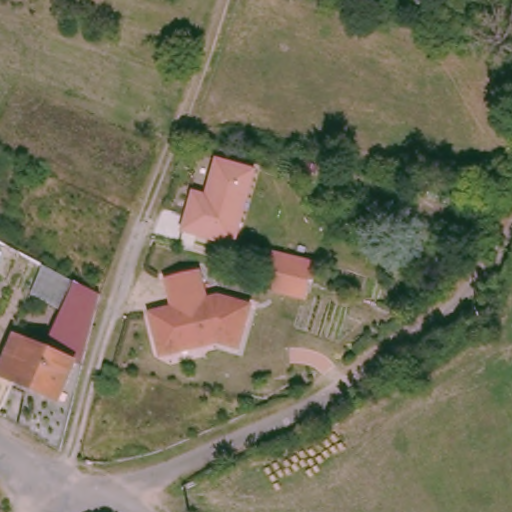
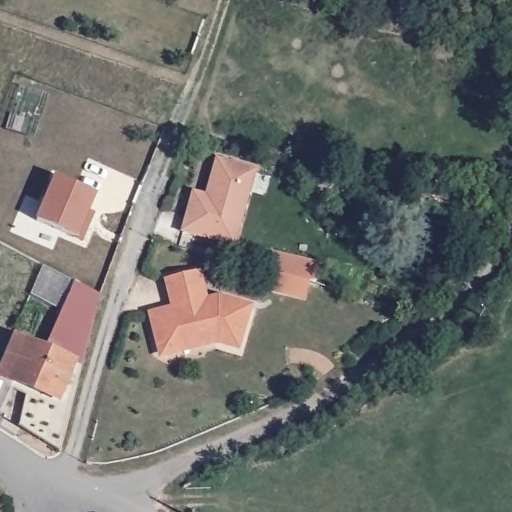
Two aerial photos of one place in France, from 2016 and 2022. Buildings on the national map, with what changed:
unchanged [(218,160),(257,172),(247,203),(208,193),(218,160)]
new [(37,220),(55,177),(97,195),(79,238),(37,220)]
unchanged [(183,230),(195,192),(207,196),(208,193),(247,203),(234,245),(183,230)]
unchanged [(331,269),(325,286),(297,277),(277,270),(282,254),(331,269)]
unchanged [(76,284),(62,313),(30,299),(44,268),(76,284)]
unchanged [(153,309),(172,306),(167,276),(200,270),(205,300),(217,298),(249,309),(235,351),(214,344),(203,345),(202,341),(155,349),(152,332),(157,331),(153,309)]
unchanged [(30,391),(17,385),(1,418),(0,418),(0,371),(15,335),(47,348),(62,313),(76,284),(102,298),(83,363),(83,366),(72,408),(72,409),(57,403),(30,391)]

